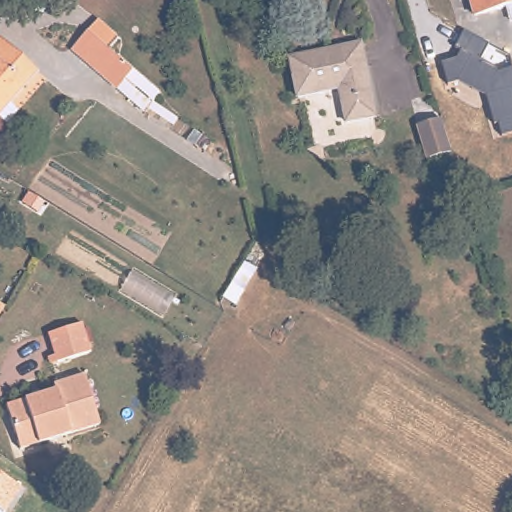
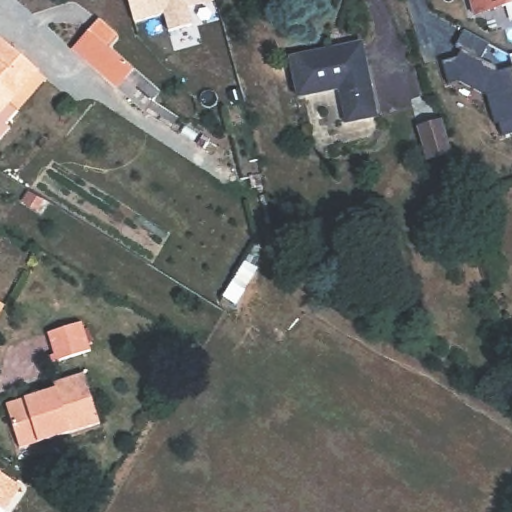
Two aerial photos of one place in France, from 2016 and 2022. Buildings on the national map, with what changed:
new [(192,26),(169,32),(164,15),(134,24),(127,0),(214,0),(187,8),(192,26)]
unchanged [(475,0),(512,0),(512,1),(477,10),(475,0)]
unchanged [(75,49),(92,30),(125,58),(107,77),(75,49)]
unchanged [(501,135),(498,124),(495,125),(486,96),(457,81),(447,85),(441,62),(457,59),(461,50),(455,46),(464,30),(489,43),(481,60),(497,68),(495,72),(512,68),(512,132),(501,135)]
unchanged [(8,127),(0,137),(0,37),(36,69),(7,102),(16,110),(4,124),(8,127)]
unchanged [(379,109),(380,112),(351,117),(343,82),(302,91),(295,53),(365,39),(379,109)]
unchanged [(125,58),(164,91),(156,99),(147,110),(119,86),(117,87),(107,77),(125,58)]
unchanged [(181,117),(176,125),(153,109),(159,101),(181,117)]
unchanged [(440,120),(441,120),(451,153),(427,160),(417,126),(440,120)]
unchanged [(46,332),(80,321),(89,350),(55,361),(46,333),(46,332)]
unchanged [(54,388),(52,382),(83,373),(98,423),(17,448),(4,403),(54,388)]
unchanged [(0,509),(0,474),(20,487),(5,511),(0,509)]

